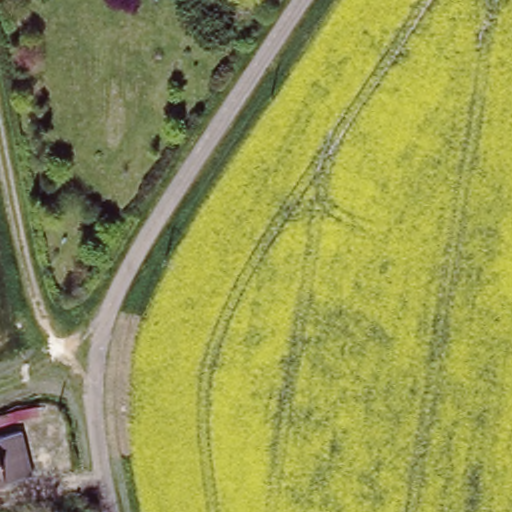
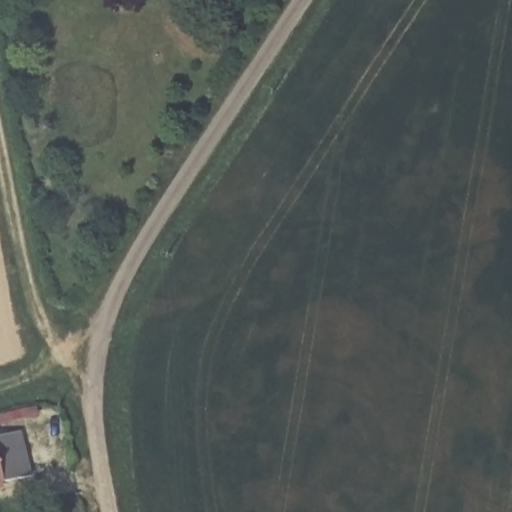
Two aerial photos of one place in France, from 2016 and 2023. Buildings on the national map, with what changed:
unchanged [(33,475),(0,482),(0,437),(24,431),(33,475)]

